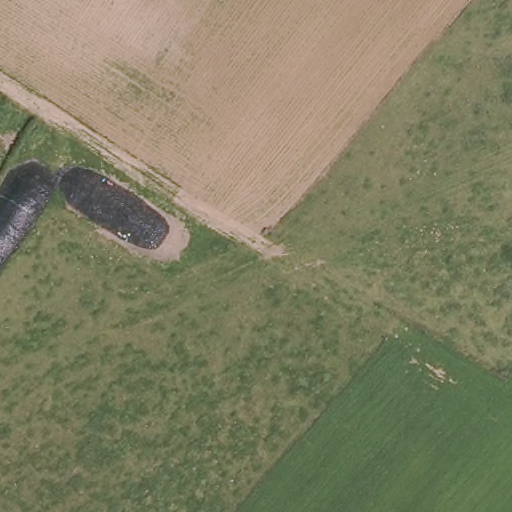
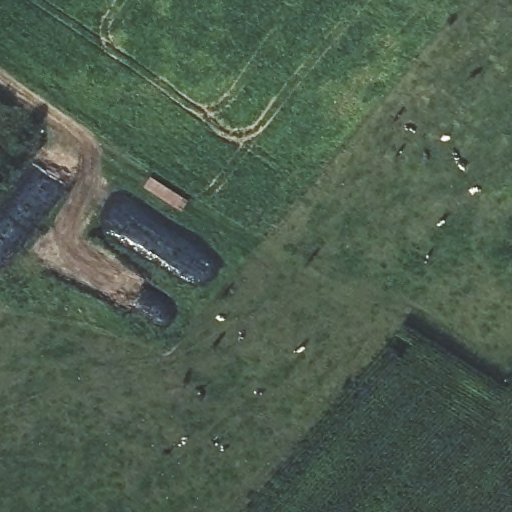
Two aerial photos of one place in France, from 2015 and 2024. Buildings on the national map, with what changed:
[]

